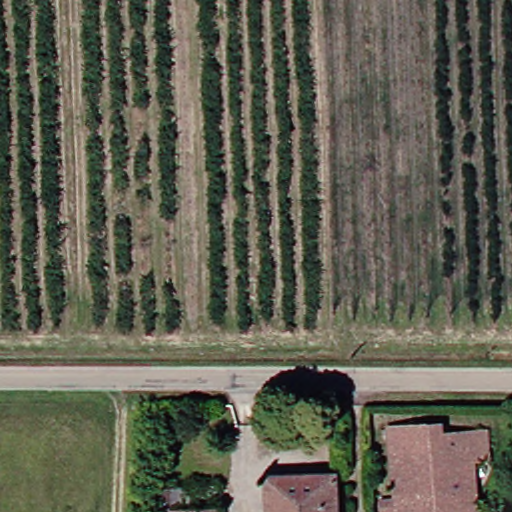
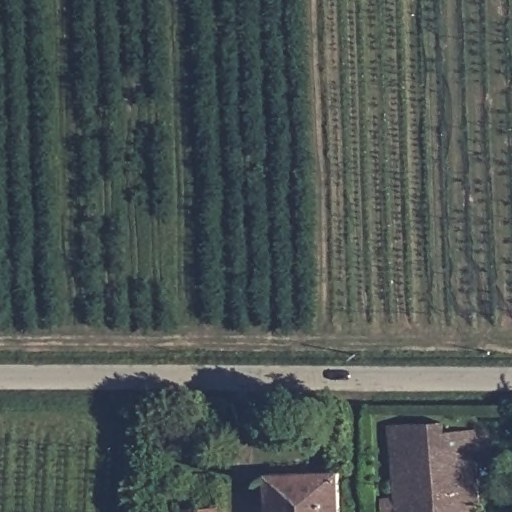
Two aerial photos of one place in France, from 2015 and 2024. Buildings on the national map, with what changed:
unchanged [(386,425),(417,425),(440,425),(440,437),(485,438),(485,475),(467,475),(468,507),(420,507),(420,512),(373,512),(373,497),(387,497),(386,425)]
unchanged [(260,512),(258,478),(332,478),(332,512),(260,512)]
unchanged [(211,494),(212,512),(159,512),(157,493),(211,494)]
unchanged [(468,507),(468,512),(420,512),(420,507),(468,507)]

